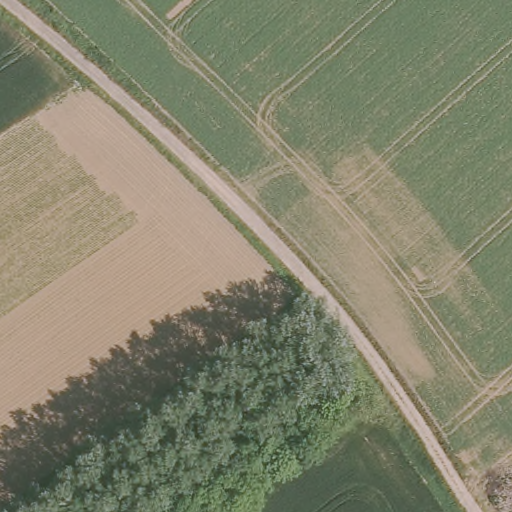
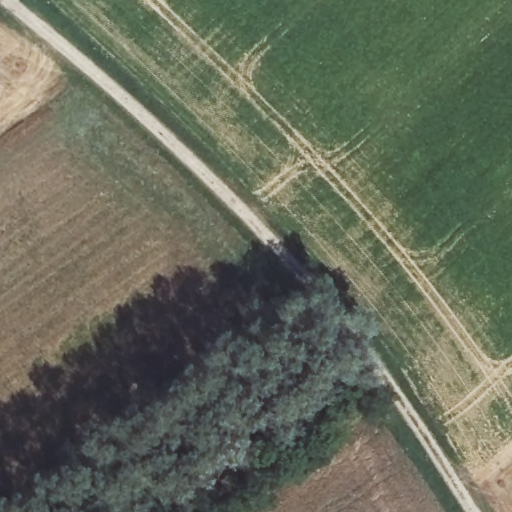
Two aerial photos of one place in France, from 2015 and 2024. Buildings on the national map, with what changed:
[]

